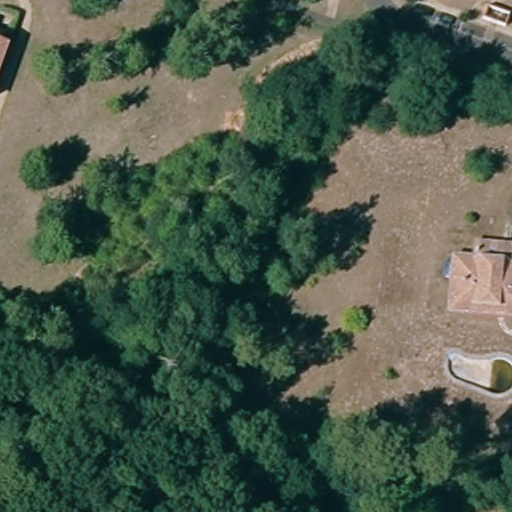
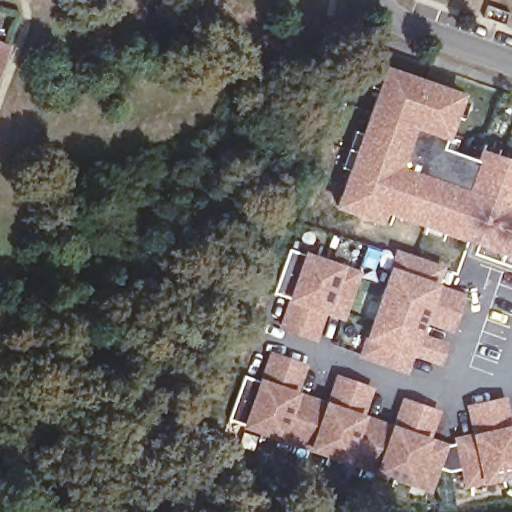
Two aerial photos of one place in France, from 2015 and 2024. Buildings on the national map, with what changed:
unchanged [(13,45),(0,84),(0,41),(13,45)]
new [(380,225),(333,208),(385,64),(464,93),(446,141),(444,141),(441,149),(475,160),(479,150),(512,160),(512,258),(384,214),(380,225)]
new [(413,358),(409,374),(357,357),(394,249),(444,265),(439,283),(465,292),(452,332),(427,319),(423,330),(447,341),(440,366),(413,358)]
new [(324,312),(316,339),(281,327),(288,297),(275,292),(290,250),(304,254),(305,252),(344,265),(360,270),(343,321),(324,312)]
demolished [(512,308),(454,306),(457,258),(512,259),(512,308)]
new [(415,487),(242,429),(244,419),(231,420),(244,377),(260,382),(269,351),(309,366),(299,393),(327,401),(335,375),(374,388),(365,416),(392,424),(402,398),(441,412),(432,439),(449,445),(432,495),(415,487)]
new [(467,406),(505,398),(511,425),(512,425),(512,478),(483,484),(463,488),(454,436),(471,433),(467,406)]

